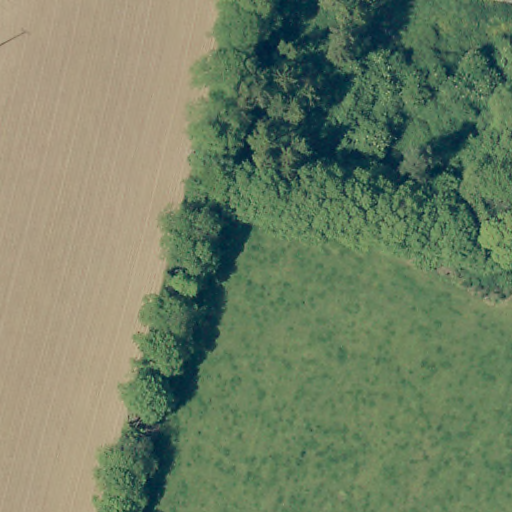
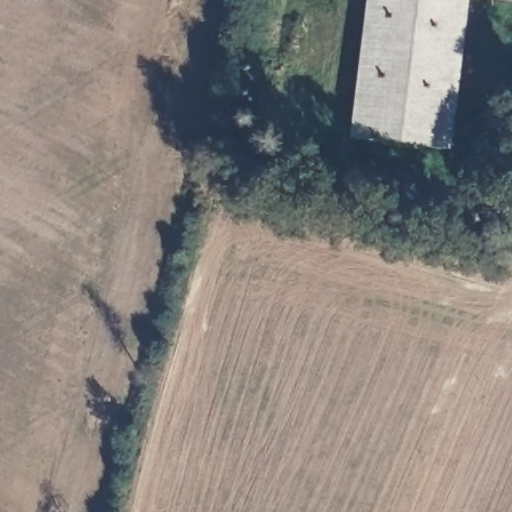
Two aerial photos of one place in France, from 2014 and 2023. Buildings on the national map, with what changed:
new [(348,138),(365,0),(469,0),(449,151),(348,138)]
unchanged [(503,0),(512,0),(512,1),(503,0)]

